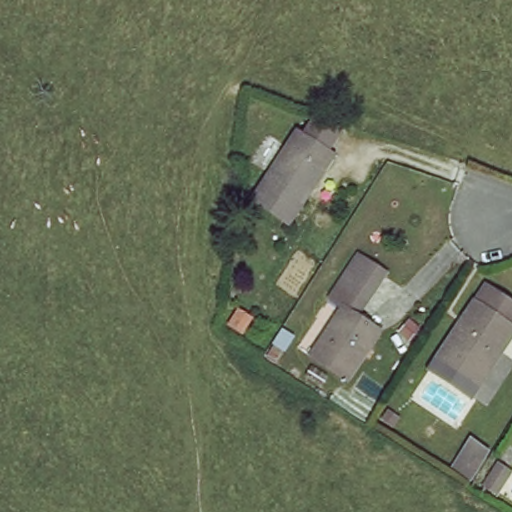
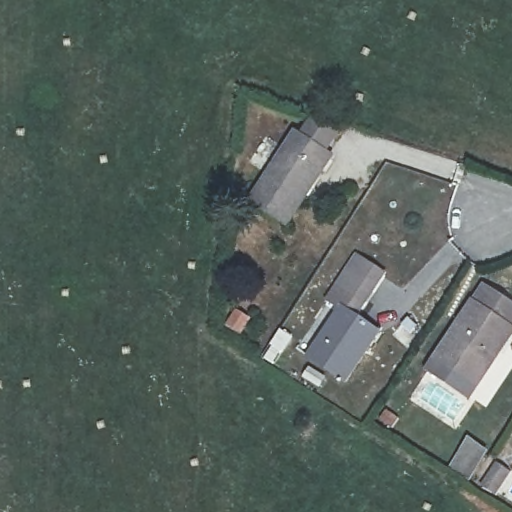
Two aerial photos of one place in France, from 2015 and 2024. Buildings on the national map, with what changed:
unchanged [(285,218),(250,196),(294,127),(300,131),(312,112),(336,127),(324,147),(330,151),(285,218)]
unchanged [(381,326),(350,374),(314,351),(345,302),(332,294),(360,251),(388,269),(360,312),(381,326)]
unchanged [(487,285),(512,301),(512,335),(480,384),(439,357),(487,285)]
unchanged [(274,343),(301,361),(296,369),(268,352),(274,343)]
unchanged [(500,467),(486,488),(473,480),(487,458),(500,467)]

